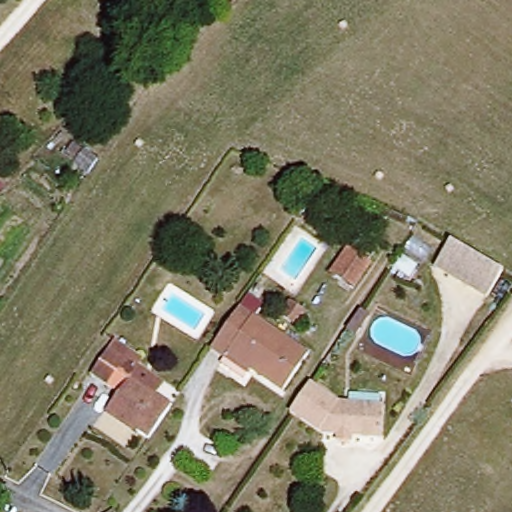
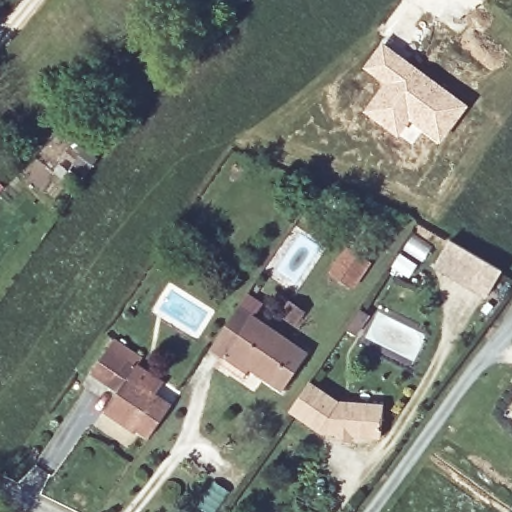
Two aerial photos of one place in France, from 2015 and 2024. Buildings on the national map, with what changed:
new [(382,84),(362,67),(382,41),(470,105),(439,146),(422,132),(411,146),(362,110),(382,84)]
unchanged [(96,160),(88,171),(75,162),(77,158),(67,150),(72,142),(83,150),(96,160)]
unchanged [(487,299),(433,268),(450,240),(502,271),(487,299)]
unchanged [(357,241),(376,254),(367,265),(370,267),(352,293),(330,278),(347,252),(349,254),(357,241)]
unchanged [(400,254),(420,268),(412,280),(390,268),(400,254)]
unchanged [(295,323),(281,315),(290,302),(303,311),(295,323)]
unchanged [(230,357),(215,347),(243,307),(312,354),(287,390),(255,368),(252,372),(230,357)]
unchanged [(153,438),(111,410),(122,392),(95,373),(118,339),(146,357),(141,365),(167,382),(160,393),(176,405),(153,438)]
unchanged [(342,440),(342,435),(327,433),(294,411),(314,382),(343,401),(387,405),(385,438),(355,435),(355,441),(342,440)]

